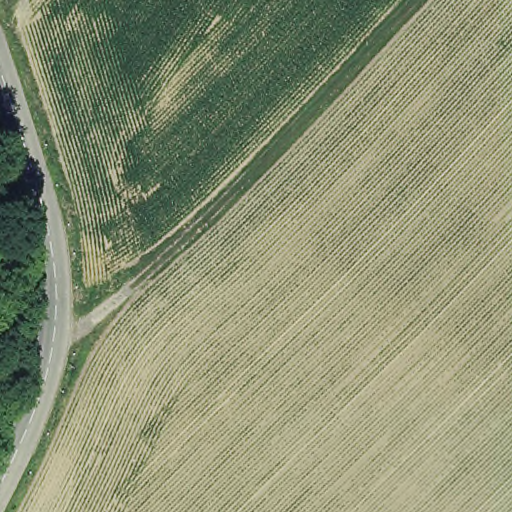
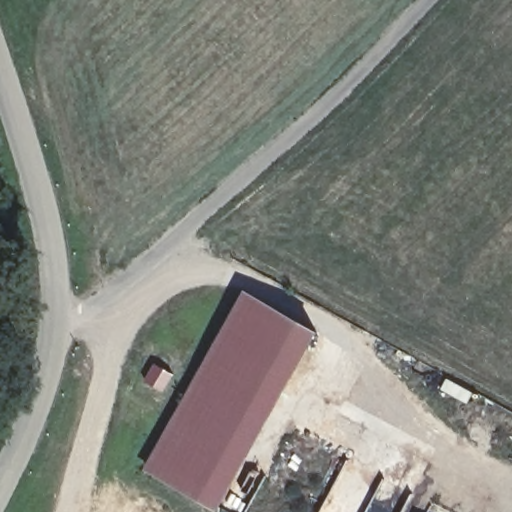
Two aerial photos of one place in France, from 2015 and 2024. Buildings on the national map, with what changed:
new [(218,510),(145,467),(242,290),(318,330),(218,510)]

